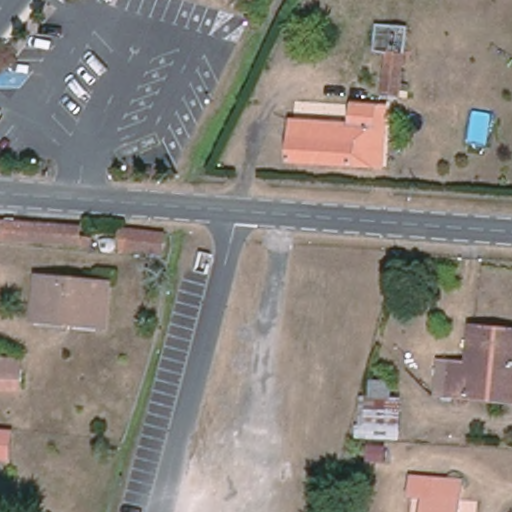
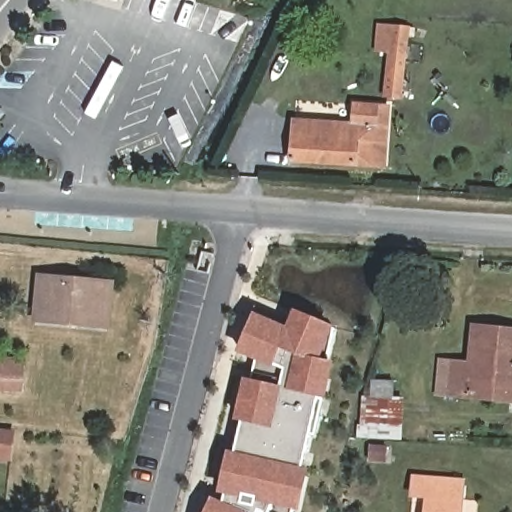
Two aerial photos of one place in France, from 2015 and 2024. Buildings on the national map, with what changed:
unchanged [(401,97),(386,95),(391,52),(389,52),(391,27),(408,29),(401,97)]
unchanged [(373,166),(362,165),(293,160),(296,121),(355,125),(356,105),(377,106),(376,129),(373,166)]
demolished [(82,245),(0,239),(0,222),(84,228),(82,245)]
demolished [(165,253),(135,250),(134,253),(121,252),(124,231),(166,235),(165,253)]
unchanged [(111,284),(108,326),(36,319),(40,278),(111,284)]
new [(213,500),(223,504),(226,491),(221,490),(230,454),(234,454),(257,357),(241,350),(256,315),(289,330),(296,313),(330,327),(335,328),(328,360),(332,361),(324,399),(315,438),(311,437),(294,512),(208,512),(213,500)]
unchanged [(512,339),(512,383),(466,379),(464,397),(438,394),(442,360),(471,364),(475,326),(490,328),(489,337),(512,339)]
unchanged [(23,390),(0,390),(0,366),(24,367),(23,390)]
unchanged [(361,438),(363,397),(372,397),(373,381),(395,382),(394,398),(404,398),(402,439),(361,438)]
unchanged [(11,460),(0,459),(0,432),(14,433),(11,460)]
unchanged [(388,446),(386,463),(370,462),(372,445),(388,446)]
unchanged [(464,481),(461,512),(426,512),(428,497),(413,496),(414,477),(464,481)]

